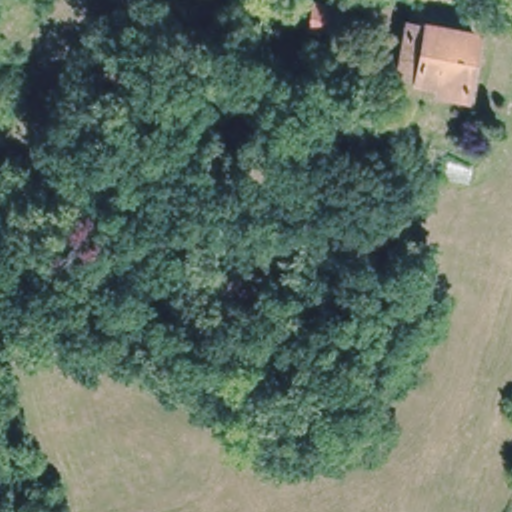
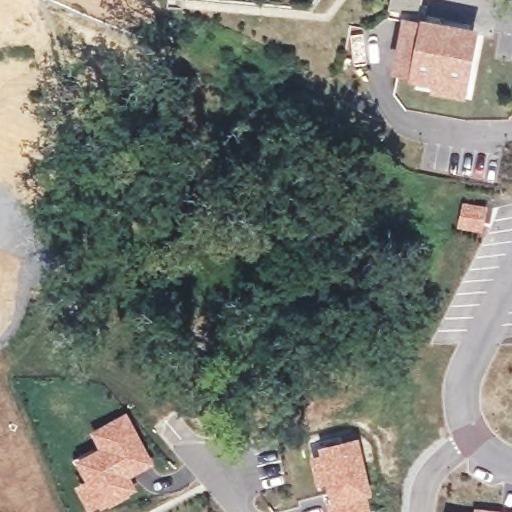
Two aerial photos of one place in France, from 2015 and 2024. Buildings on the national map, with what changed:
new [(391,6),(392,0),(423,0),(420,14),(391,6)]
demolished [(328,31),(311,29),(312,22),(314,3),(332,5),(328,31)]
unchanged [(465,92),(437,86),(438,80),(401,72),(410,23),(475,35),(465,92)]
unchanged [(473,165),(470,181),(442,176),(445,159),(473,165)]
new [(156,464),(133,476),(140,490),(111,505),(87,508),(75,485),(87,479),(77,459),(100,448),(92,431),(129,410),(156,464)]
new [(326,503),(333,501),(327,482),(318,485),(312,458),(322,455),(320,446),(361,438),(373,495),(366,496),(370,512),(328,512),(326,503)]
new [(512,512),(475,512),(476,506),(512,511),(512,512)]
new [(449,511),(458,512),(449,512),(449,511)]

